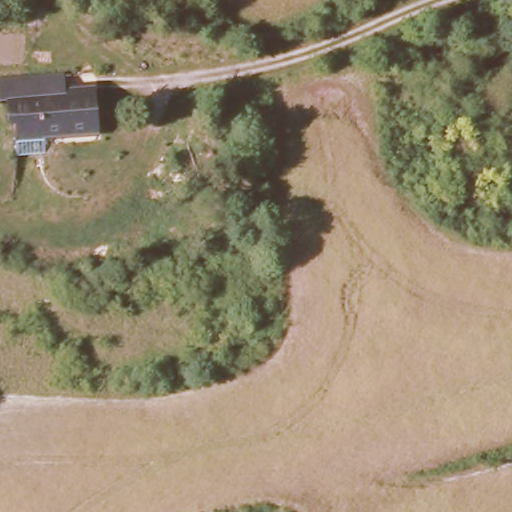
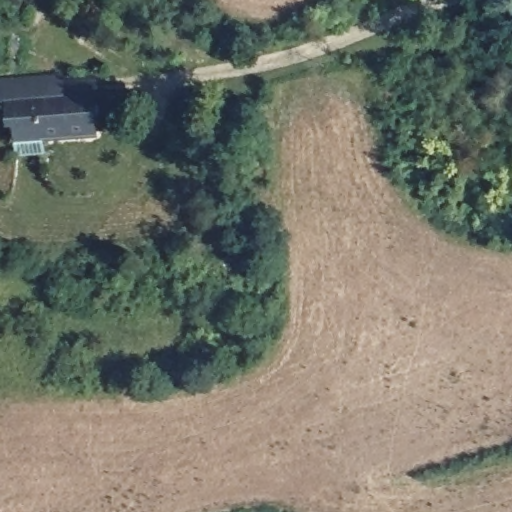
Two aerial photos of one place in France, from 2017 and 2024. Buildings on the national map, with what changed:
unchanged [(11,141),(5,86),(98,86),(101,140),(11,141)]

